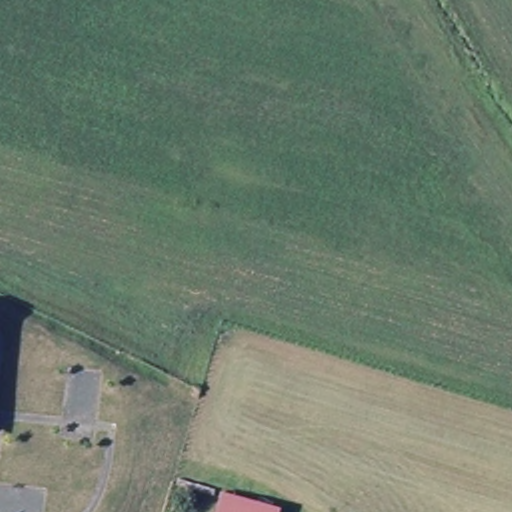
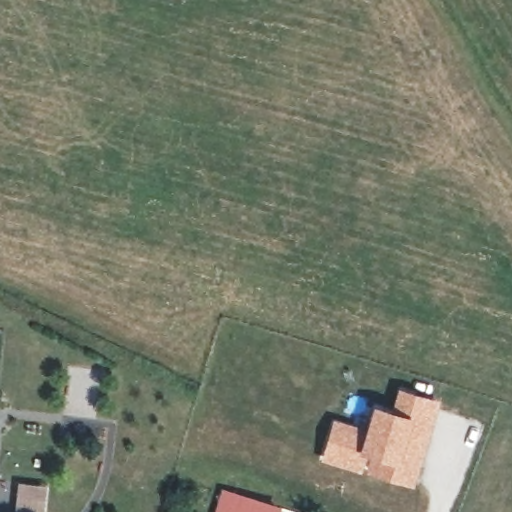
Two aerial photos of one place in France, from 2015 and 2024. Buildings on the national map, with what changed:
new [(367,428),(374,404),(394,411),(400,386),(441,399),(414,487),(322,460),(334,418),(367,428)]
unchanged [(275,506),(273,512),(219,512),(228,488),(275,506)]

